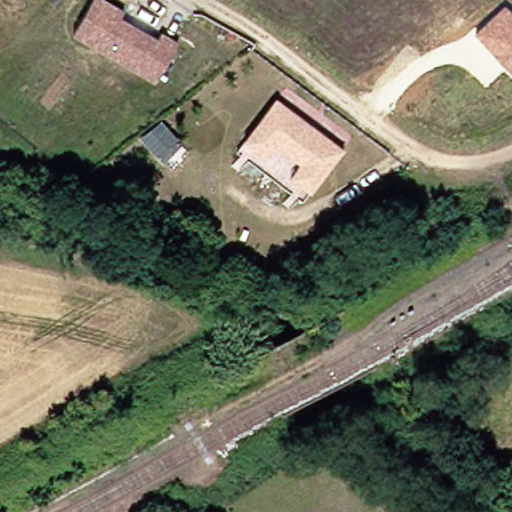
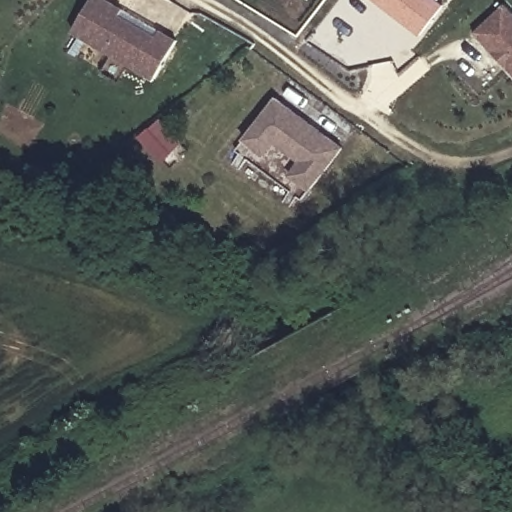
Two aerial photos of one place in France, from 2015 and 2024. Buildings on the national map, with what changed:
unchanged [(159,30),(178,38),(161,79),(73,40),(90,0),(120,13),(118,20),(126,24),(157,36),(159,30)]
new [(421,34),(376,0),(438,0),(444,4),(421,34)]
unchanged [(512,78),(473,35),(506,5),(512,12),(512,78)]
unchanged [(349,138),(309,189),(244,139),(285,87),(349,138)]
unchanged [(183,144),(164,160),(146,136),(164,121),(183,144)]

